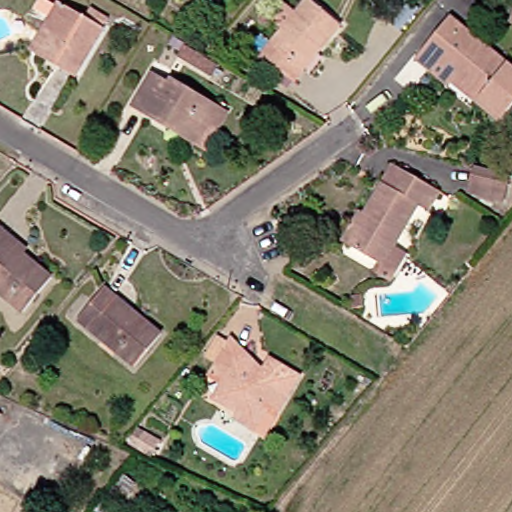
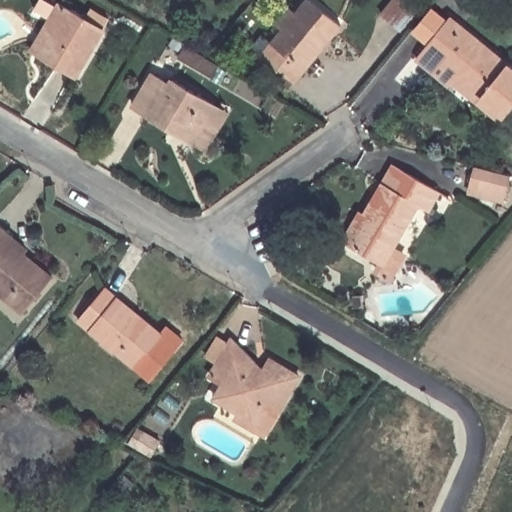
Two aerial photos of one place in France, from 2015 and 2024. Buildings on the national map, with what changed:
unchanged [(39,18),(25,10),(31,0),(43,0),(48,3),(49,2),(75,17),(80,9),(99,20),(94,29),(65,77),(20,50),(39,18)]
unchanged [(308,53),(304,50),(291,65),(295,69),(284,82),(251,55),(274,27),(262,18),(273,5),(285,14),(297,0),(301,0),(331,25),(308,53)]
unchanged [(420,65),(405,52),(412,45),(440,12),(512,74),(512,89),(491,113),(487,117),(422,62),(420,65)]
unchanged [(166,127),(123,101),(142,69),(159,79),(162,75),(209,102),(217,107),(195,144),(166,127)]
unchanged [(381,277),(368,269),(373,260),(340,241),(333,237),(350,207),(354,210),(383,160),(430,187),(419,206),(408,200),(383,243),(393,249),(381,277)]
unchanged [(464,192),(466,185),(471,167),(490,171),(504,175),(499,194),(497,201),(464,192)]
unchanged [(13,307),(0,297),(0,231),(16,244),(13,248),(42,272),(13,307)]
unchanged [(104,302),(120,315),(123,311),(151,334),(124,367),(68,320),(95,287),(108,298),(104,302)]
unchanged [(364,295),(364,307),(352,307),(352,295),(364,295)]
unchanged [(225,406),(212,397),(205,393),(216,375),(202,367),(207,358),(195,351),(206,332),(218,340),(222,334),(246,357),(242,363),(250,367),(259,353),(289,371),(254,430),(239,421),(222,411),(225,406)]
unchanged [(97,492),(115,505),(110,512),(83,512),(97,492)]

